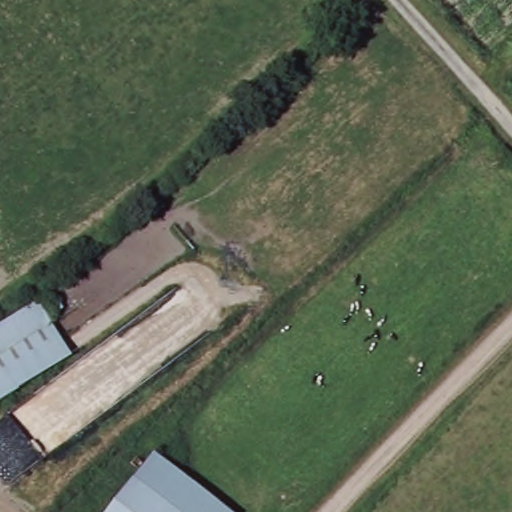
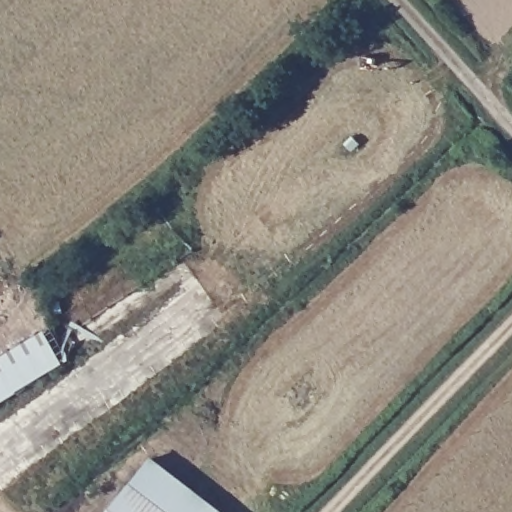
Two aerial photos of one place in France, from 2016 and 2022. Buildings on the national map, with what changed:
unchanged [(0,328),(35,307),(69,362),(0,404),(0,328)]
unchanged [(150,459),(222,512),(168,512),(131,485),(150,459)]
unchanged [(131,485),(168,512),(111,512),(131,485)]

